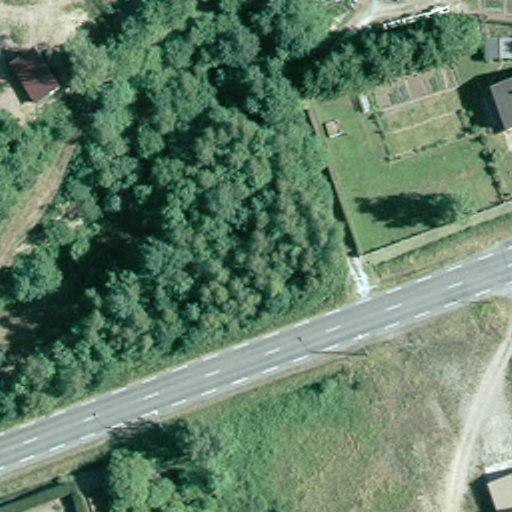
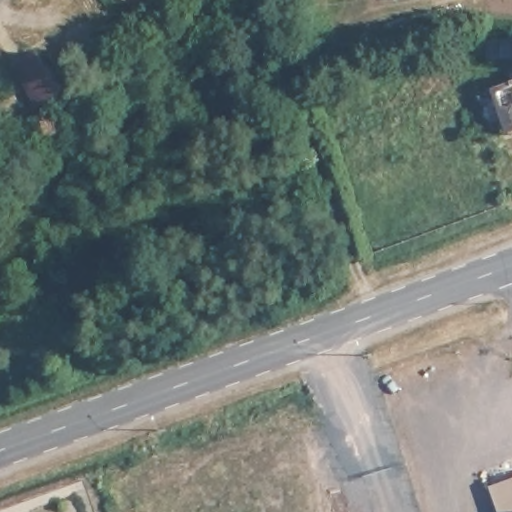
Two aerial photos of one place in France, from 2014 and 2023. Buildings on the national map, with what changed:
unchanged [(487,41),(512,41),(512,57),(488,58),(487,41)]
unchanged [(510,130),(497,92),(504,90),(500,79),(512,75),(512,129),(510,130)]
unchanged [(410,486),(395,492),(385,465),(400,460),(410,486)]
unchanged [(487,483),(512,474),(512,512),(497,512),(487,483)]

